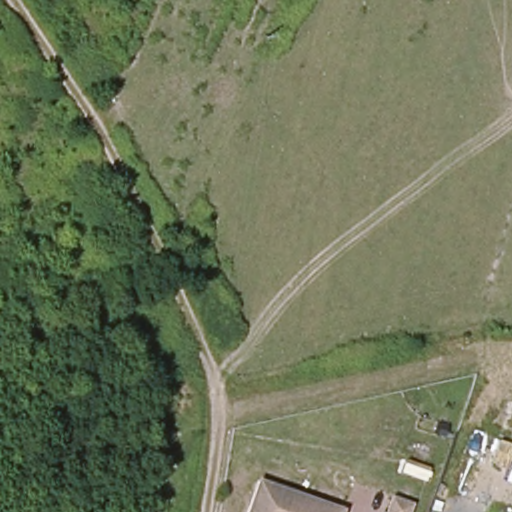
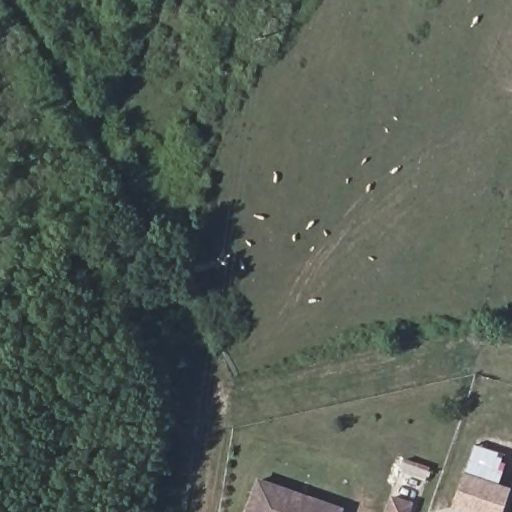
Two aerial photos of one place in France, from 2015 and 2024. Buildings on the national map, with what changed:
new [(454,507),(465,472),(512,487),(504,512),(468,512),(454,507)]
unchanged [(256,480),(340,502),(337,512),(248,512),(256,480)]
unchanged [(409,512),(382,512),(388,491),(412,501),(409,512)]

